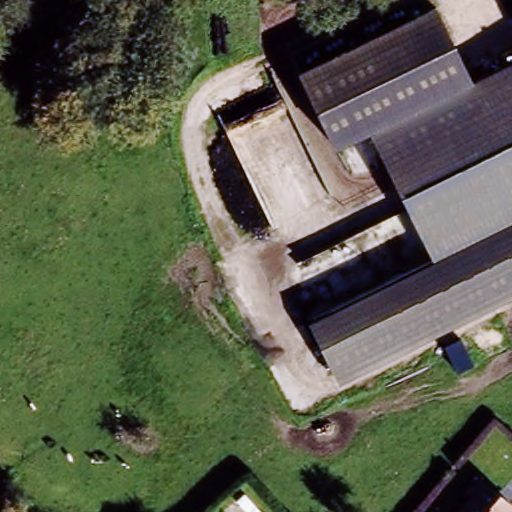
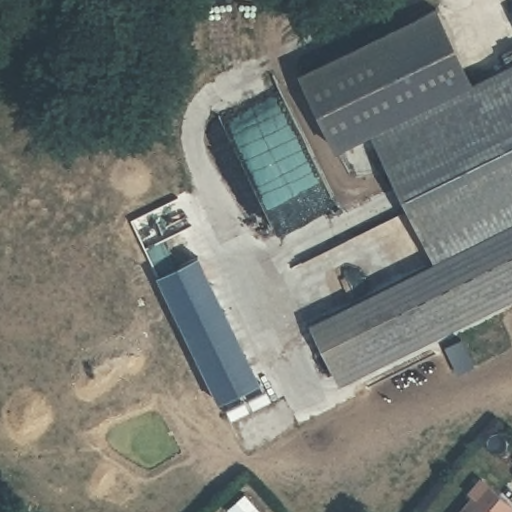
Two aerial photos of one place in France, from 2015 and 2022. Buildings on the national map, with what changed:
unchanged [(372,134),(332,155),(297,79),(434,9),(472,83),(372,134)]
unchanged [(512,15),(512,20),(511,16),(512,15)]
unchanged [(372,134),(472,83),(512,62),(512,223),(433,262),(372,134)]
unchanged [(512,223),(512,291),(335,382),(306,323),(433,262),(512,223)]
new [(198,262),(258,387),(222,407),(157,282),(198,262)]
unchanged [(483,483),(512,507),(512,512),(458,512),(483,483)]
unchanged [(246,496),(257,512),(220,512),(246,496)]

